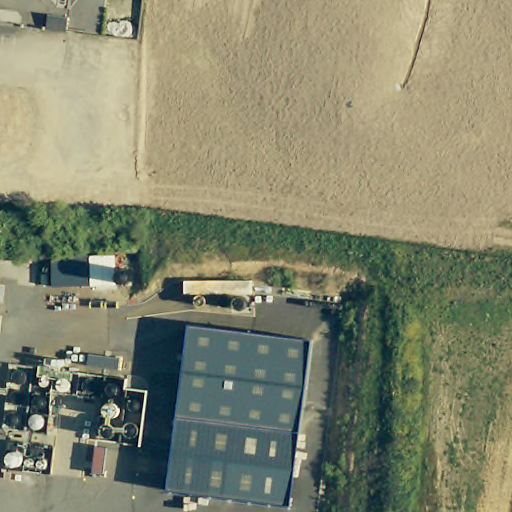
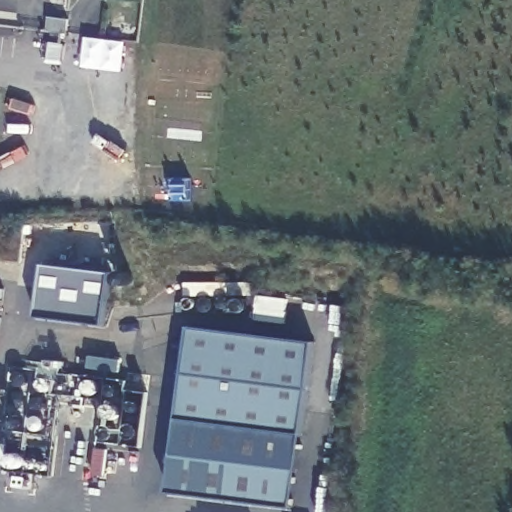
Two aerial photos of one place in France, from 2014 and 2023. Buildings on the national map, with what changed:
new [(41,262),(121,273),(114,323),(35,312),(41,262)]
unchanged [(190,326),(312,341),(291,505),(169,490),(190,326)]

